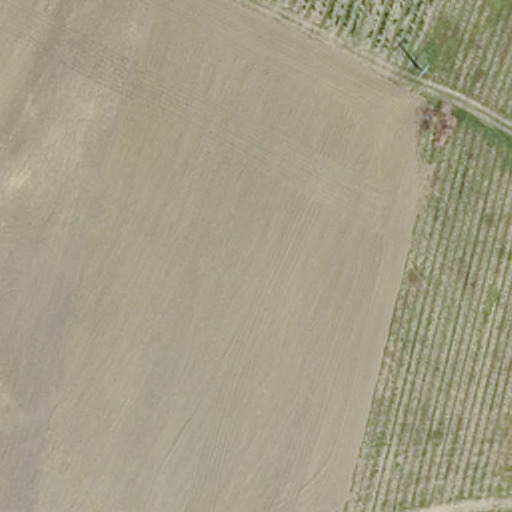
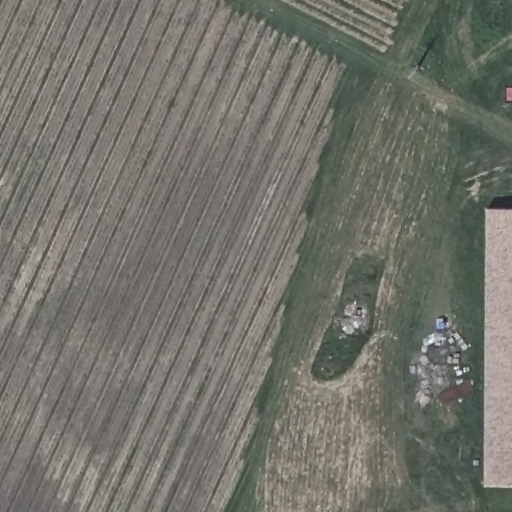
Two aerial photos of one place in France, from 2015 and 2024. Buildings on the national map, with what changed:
new [(487,484),(488,207),(512,207),(512,484),(487,484)]

